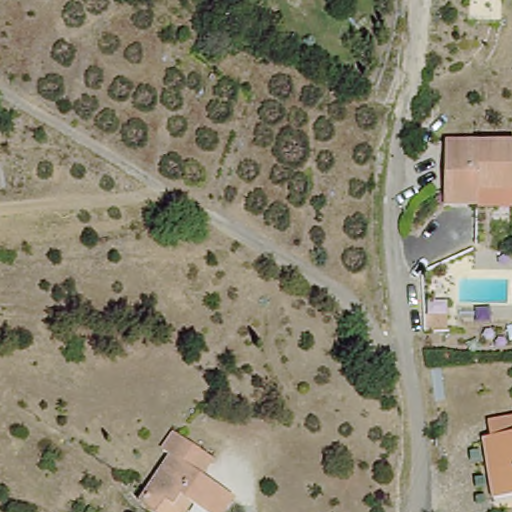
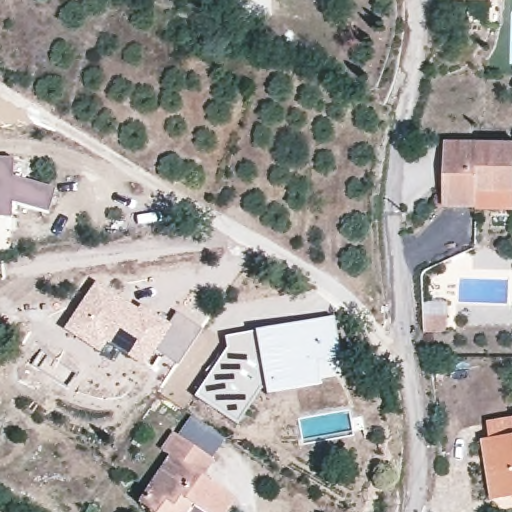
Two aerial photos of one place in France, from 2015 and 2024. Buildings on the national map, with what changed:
unchanged [(469,27),(466,4),(460,3),(460,0),(500,0),(500,28),(469,27)]
unchanged [(471,212),(440,210),(442,141),(512,147),(512,181),(511,195),(510,213),(471,212)]
new [(13,175),(56,188),(47,214),(11,201),(12,218),(0,218),(0,158),(14,157),(13,175)]
new [(95,281),(137,307),(140,304),(168,322),(175,311),(202,326),(177,366),(155,353),(145,367),(125,356),(134,342),(118,331),(100,355),(62,329),(95,281)]
new [(425,311),(447,312),(446,337),(425,336),(425,311)]
new [(255,331),(333,318),(340,357),(317,362),(322,387),(267,398),(265,387),(259,389),(237,423),(196,396),(228,348),(227,338),(255,331)]
unchanged [(488,503),(478,444),(485,443),(482,425),(512,419),(512,498),(488,503)]
unchanged [(167,453),(180,440),(210,469),(198,482),(228,512),(189,512),(185,508),(182,512),(135,512),(128,506),(175,462),(167,453)]

